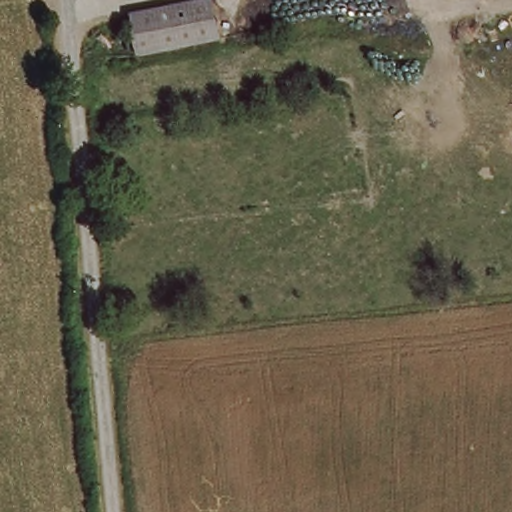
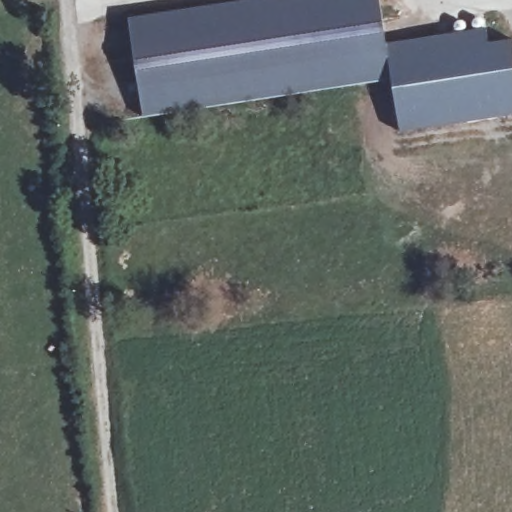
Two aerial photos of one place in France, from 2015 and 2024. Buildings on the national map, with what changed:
new [(241,0),(379,0),(386,43),(486,30),(489,46),(512,41),(512,114),(400,131),(392,81),(145,118),(130,19),(241,0)]
demolished [(219,44),(136,58),(129,16),(211,2),(219,44)]

